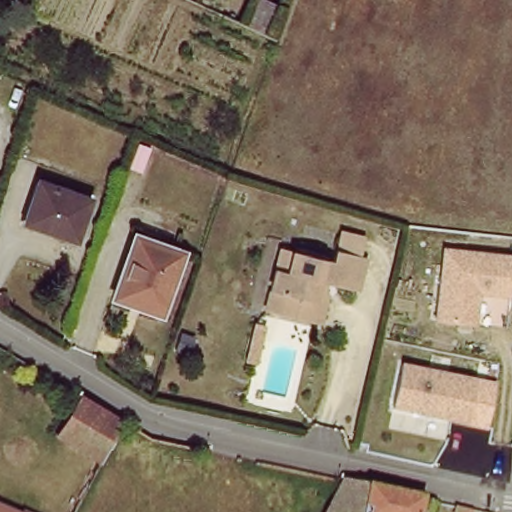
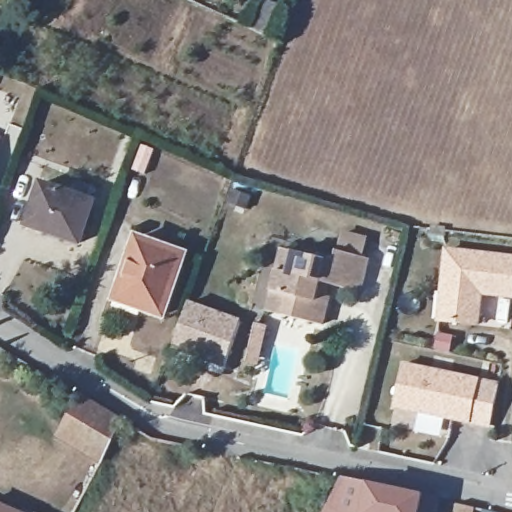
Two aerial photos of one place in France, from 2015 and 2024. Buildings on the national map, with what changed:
unchanged [(268,36),(251,27),(263,0),(267,0),(281,6),(268,36)]
new [(2,138),(0,143),(0,137),(2,138)]
unchanged [(146,175),(134,171),(143,146),(155,151),(146,175)]
unchanged [(33,209),(41,185),(92,202),(77,244),(45,232),(27,225),(33,209)]
unchanged [(138,237),(184,254),(163,317),(117,300),(138,237)]
unchanged [(512,256),(512,299),(488,297),(483,327),(438,322),(446,249),(512,256)]
unchanged [(272,297),(277,276),(283,255),(294,257),(334,267),(337,256),(367,263),(359,297),(319,287),(317,294),(324,296),(328,302),(321,330),(282,321),(267,317),(272,297)]
new [(187,299),(242,318),(224,369),(171,350),(187,299)]
new [(255,322),(268,325),(257,367),(244,363),(255,322)]
unchanged [(472,425),(396,410),(406,362),(482,378),(472,425)]
unchanged [(55,432),(79,392),(120,418),(99,457),(55,432)]
unchanged [(432,499),(429,512),(323,512),(341,480),(432,499)]
unchanged [(476,512),(457,512),(459,503),(478,507),(476,512)]
unchanged [(4,512),(0,512),(0,510),(4,512)]

